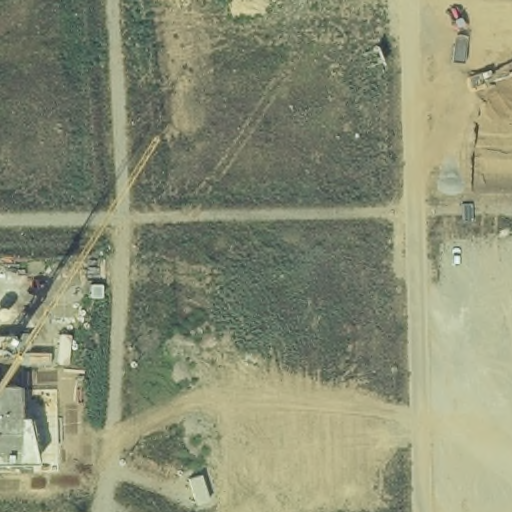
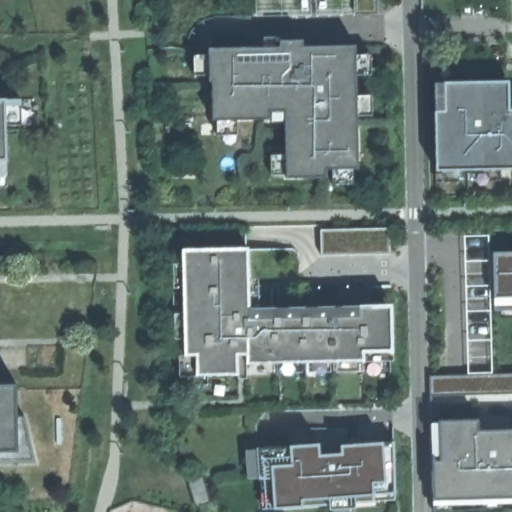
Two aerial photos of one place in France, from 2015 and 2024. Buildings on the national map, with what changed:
new [(311,15),(256,16),(256,0),(311,0),(311,15)]
unchanged [(316,0),(377,0),(377,14),(316,15),(316,0)]
new [(504,16),(460,17),(460,0),(503,0),(504,16)]
unchanged [(194,55),(208,55),(209,47),(263,47),(264,37),(280,36),(281,40),(302,39),(303,46),(355,45),(356,54),(371,54),(371,74),(356,75),(357,95),(372,95),(372,115),(357,116),(358,168),(352,169),(352,184),(333,184),(332,169),(327,169),(326,177),(286,178),(285,175),(271,175),(271,155),(285,154),(285,121),(237,120),(237,135),(217,135),(217,120),(212,120),(211,81),(209,81),(208,75),(194,75),(194,55)]
new [(505,43),(506,69),(457,70),(457,44),(505,43)]
new [(510,109),(512,109),(512,169),(496,169),(495,180),(470,181),(470,170),(460,170),(459,181),(436,181),(435,83),(508,80),(510,109)]
new [(20,98),(21,124),(6,125),(6,186),(0,186),(0,99),(20,98)]
new [(48,138),(55,137),(55,146),(48,146),(48,138)]
new [(389,228),(390,254),(321,256),(320,230),(389,228)]
new [(464,236),(488,235),(492,373),(512,373),(512,393),(430,396),(430,375),(467,374),(464,236)]
new [(182,254),(182,249),(248,247),(248,279),(257,279),(259,307),(392,304),(393,360),(359,361),(358,370),(337,371),(336,361),(330,362),(330,371),(308,371),(307,362),(301,362),(301,372),(280,372),(279,363),(246,363),(246,378),(238,378),(238,374),(208,375),(207,384),(185,384),(185,376),(180,375),(180,339),(175,338),(173,315),(173,293),(182,292),(183,288),(173,287),(173,254),(182,254)]
new [(512,310),(495,310),(493,252),(512,251),(512,310)]
unchanged [(16,383),(17,415),(25,415),(35,462),(0,463),(0,384),(16,383)]
new [(438,423),(439,420),(478,419),(479,414),(510,413),(511,429),(512,429),(512,498),(501,498),(501,507),(433,512),(432,456),(435,456),(435,459),(440,459),(439,439),(431,438),(431,424),(438,423)]
new [(317,443),(317,435),(340,434),(342,444),(395,441),(395,499),(356,503),(355,507),(330,509),(329,505),(262,509),(260,479),(248,478),(247,449),(317,443)]
new [(200,476),(208,500),(196,504),(189,479),(200,476)]

